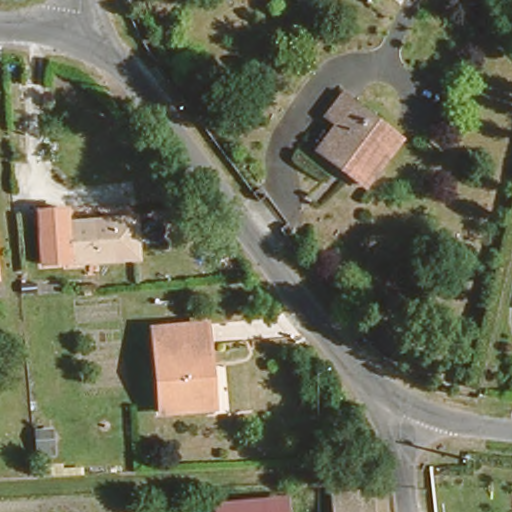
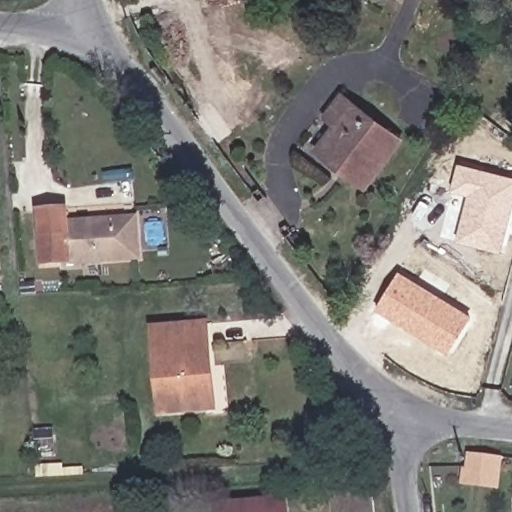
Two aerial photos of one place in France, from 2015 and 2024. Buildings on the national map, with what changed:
unchanged [(370,182),(322,146),(342,120),(331,112),(348,90),(407,134),(370,182)]
new [(457,241),(468,195),(452,192),(459,163),(512,177),(512,210),(502,252),(457,241)]
unchanged [(68,217),(138,214),(140,252),(70,258),(69,256),(42,257),(39,207),(67,205),(68,217)]
new [(472,315),(448,353),(376,310),(398,271),(472,315)]
unchanged [(211,367),(215,410),(160,414),(153,327),(205,323),(208,367),(211,367)]
unchanged [(332,497),(375,492),(376,512),(333,512),(332,497)]
new [(290,498),(291,512),(215,512),(214,502),(290,498)]

